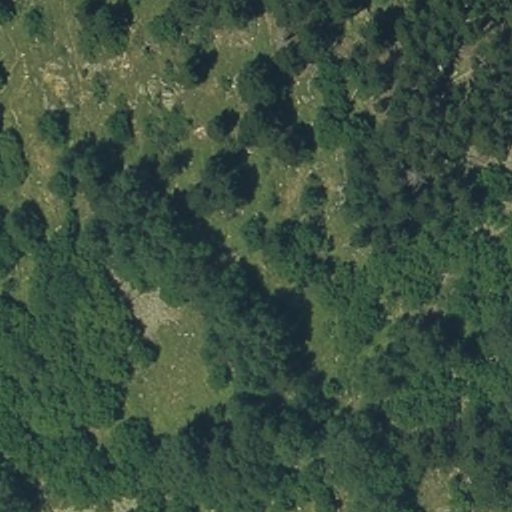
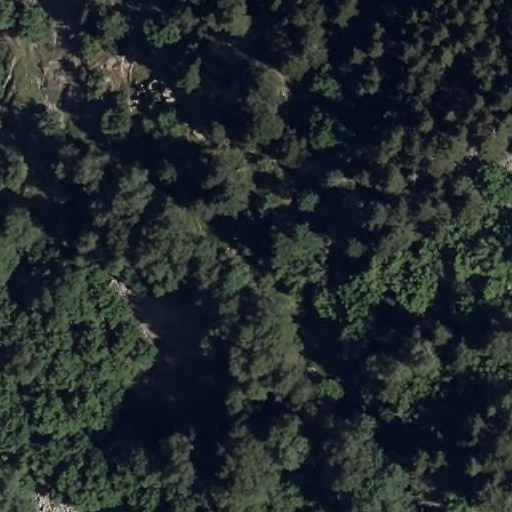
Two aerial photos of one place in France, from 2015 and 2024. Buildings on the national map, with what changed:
[]

